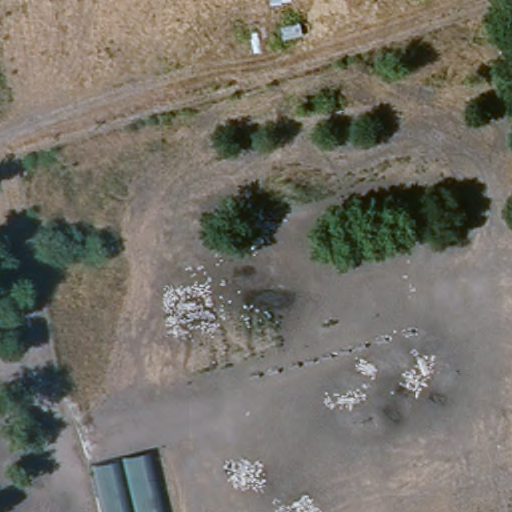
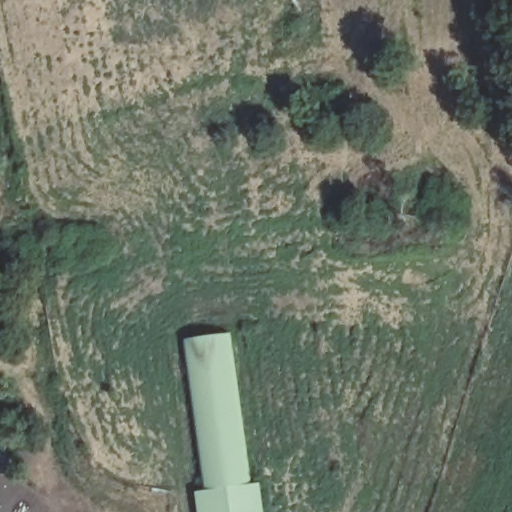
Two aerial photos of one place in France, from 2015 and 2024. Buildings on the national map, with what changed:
new [(185,340),(230,333),(250,487),(206,491),(185,340)]
demolished [(83,457),(125,449),(134,511),(129,512),(95,512),(83,457)]
new [(259,486),(262,512),(200,512),(198,492),(259,486)]

